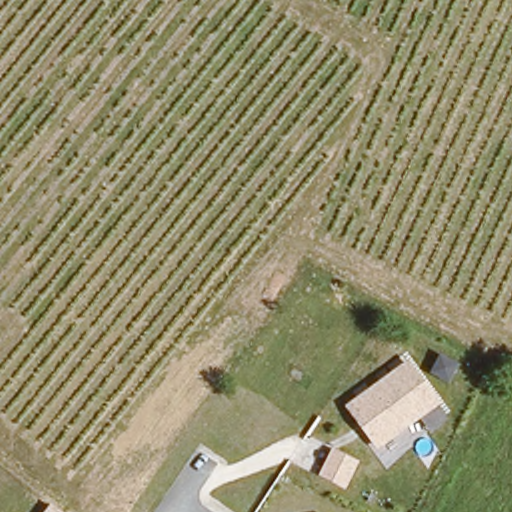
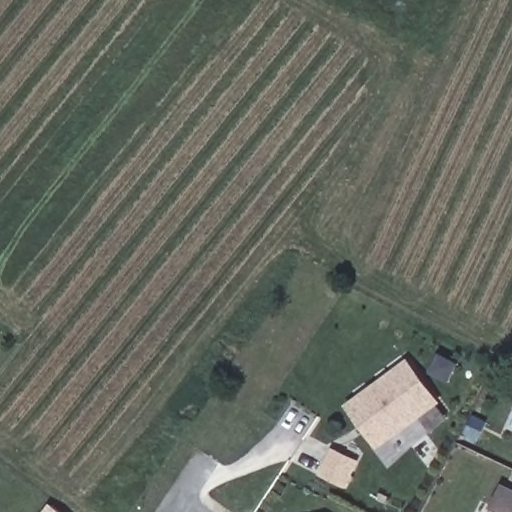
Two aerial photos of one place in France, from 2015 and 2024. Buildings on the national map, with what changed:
unchanged [(441,403),(377,447),(345,403),(409,358),(441,403)]
unchanged [(359,460),(346,487),(318,474),(333,448),(359,460)]
new [(495,511),(491,508),(502,485),(512,489),(512,512),(494,512),(495,511)]

